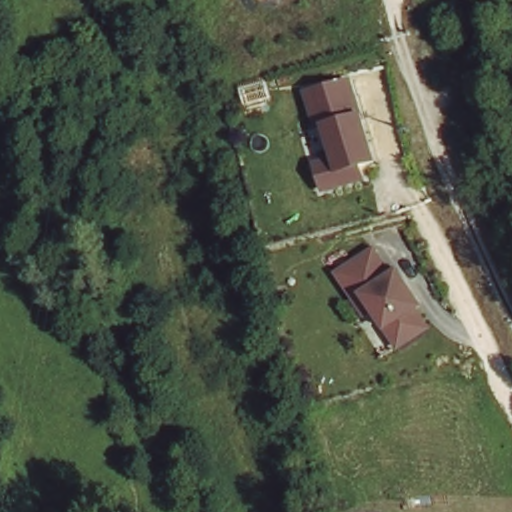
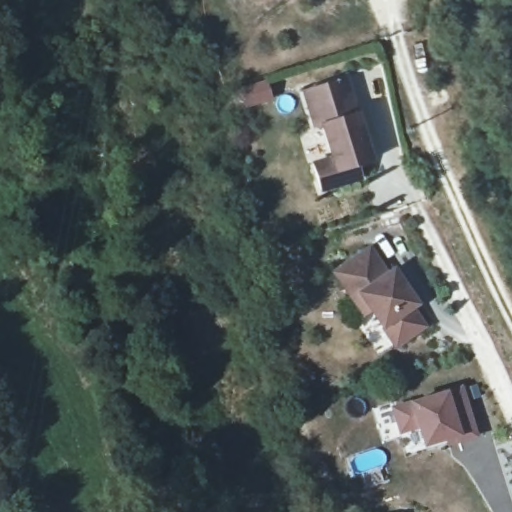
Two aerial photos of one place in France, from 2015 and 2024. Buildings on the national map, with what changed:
unchanged [(320,192),(310,157),(324,153),(303,81),(346,70),(373,163),(360,165),(362,178),(320,192)]
unchanged [(73,148),(81,144),(75,128),(106,113),(113,130),(120,127),(130,153),(81,174),(73,148)]
unchanged [(351,324),(336,305),(350,297),(332,270),(369,244),(431,328),(399,350),(367,312),(351,324)]
new [(391,405),(410,399),(449,389),(463,384),(479,436),(446,446),(442,440),(421,447),(417,428),(399,434),(391,405)]

